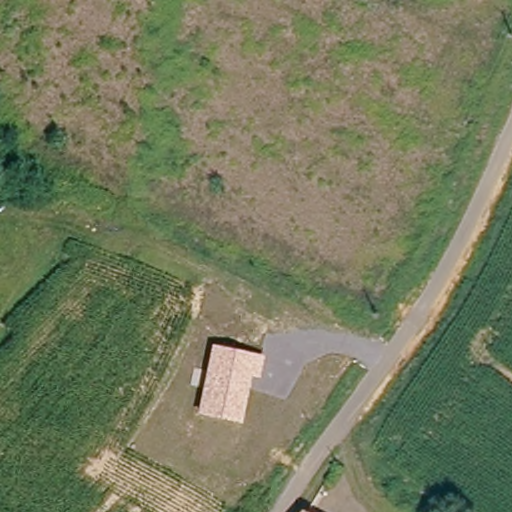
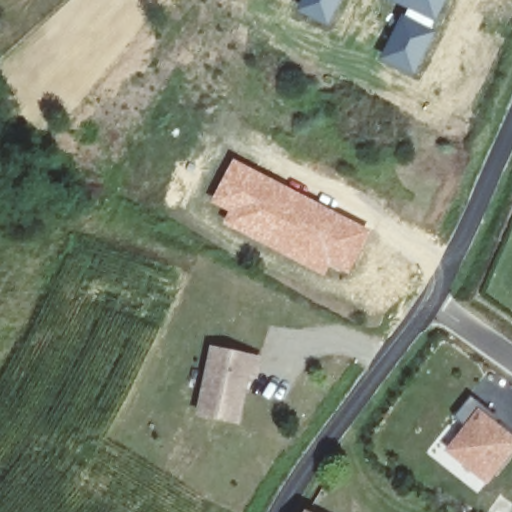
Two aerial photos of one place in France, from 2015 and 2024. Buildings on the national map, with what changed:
new [(344,0),(328,26),(295,10),(300,0),(344,0)]
new [(377,59),(405,8),(389,0),(447,0),(412,76),(377,59)]
new [(233,158),(370,230),(348,275),(328,266),(323,276),(222,223),(227,212),(209,202),(233,158)]
unchanged [(263,357),(258,381),(249,379),(240,426),(194,414),(210,345),(263,357)]
new [(497,423),(512,435),(512,452),(488,485),(444,452),(466,425),(455,417),(472,396),(500,418),(497,423)]
unchanged [(310,511),(313,512),(309,512),(310,511)]

